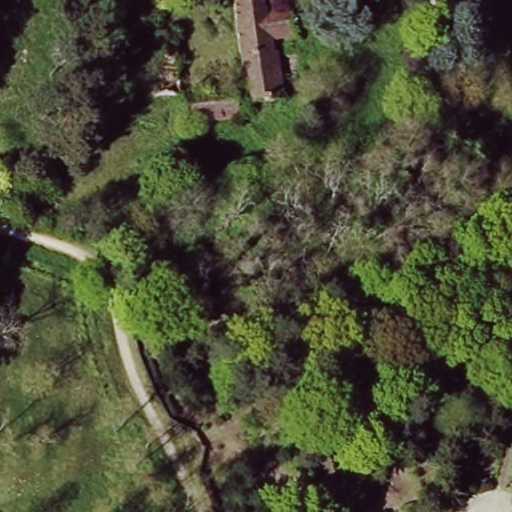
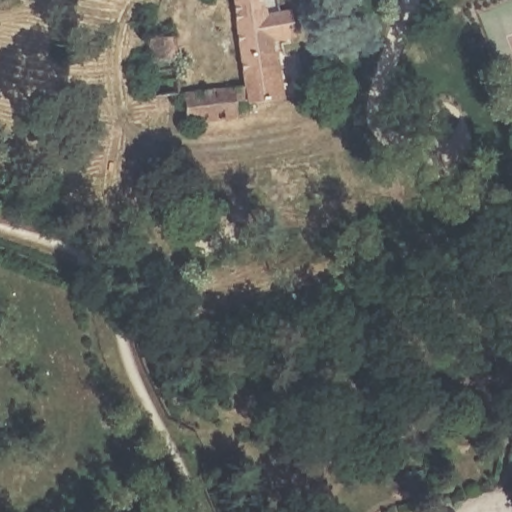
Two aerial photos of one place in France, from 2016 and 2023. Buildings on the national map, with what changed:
unchanged [(186,92),(251,85),(234,0),(262,0),(264,13),(291,7),(293,22),(298,20),(301,21),(303,25),(302,28),(299,30),(295,30),(296,35),(269,40),(271,54),(276,53),(286,98),(251,104),(251,100),(238,101),(239,118),(190,124),(186,92)]
unchanged [(159,95),(156,60),(154,39),(175,36),(177,59),(180,94),(159,95)]

